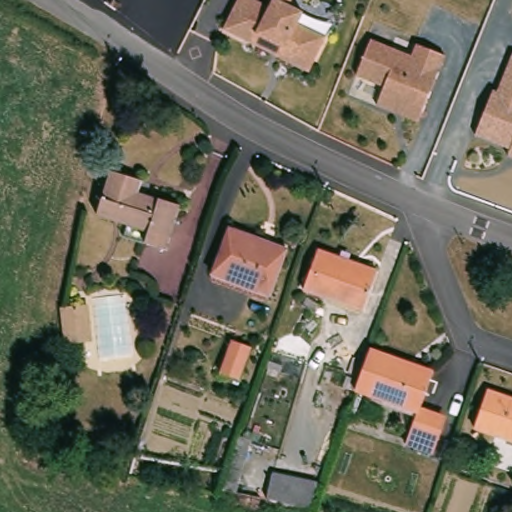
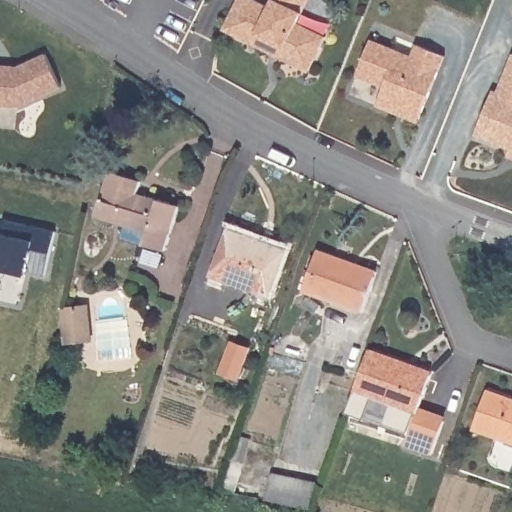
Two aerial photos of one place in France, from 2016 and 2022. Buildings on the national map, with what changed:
unchanged [(288,4),(302,11),(297,20),(326,34),(307,70),(224,29),(238,0),(259,0),(264,3),(264,0),(290,0),(288,4)]
unchanged [(410,54),(413,44),(443,57),(417,121),(376,106),(383,88),(357,77),(370,39),(410,54)]
new [(15,66),(45,52),(60,88),(16,108),(0,106),(0,65),(15,66)]
unchanged [(512,160),(505,157),(508,150),(473,136),(492,89),(496,90),(510,54),(512,54),(512,160)]
unchanged [(176,201),(168,245),(131,235),(132,227),(105,220),(113,175),(139,182),(138,191),(176,201)]
new [(54,234),(44,275),(26,270),(24,275),(0,269),(0,220),(54,234)]
unchanged [(230,226),(287,247),(273,293),(217,276),(230,226)]
unchanged [(327,250),(378,273),(361,310),(310,285),(327,250)]
demolished [(91,288),(89,305),(74,301),(76,284),(91,288)]
new [(92,342),(63,345),(60,307),(88,303),(92,342)]
unchanged [(420,411),(362,389),(376,350),(433,373),(420,411)]
unchanged [(512,401),(512,440),(475,427),(488,392),(512,401)]
unchanged [(435,451),(409,441),(420,411),(446,421),(435,451)]
unchanged [(313,507),(266,497),(272,472),(322,482),(313,507)]

